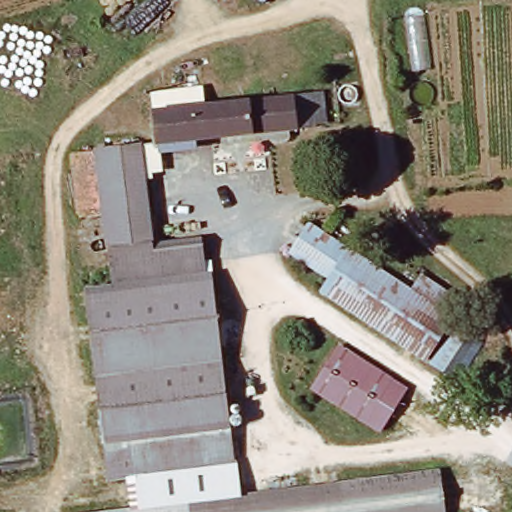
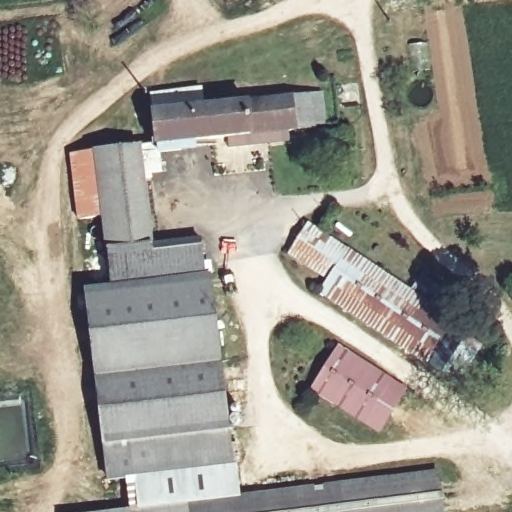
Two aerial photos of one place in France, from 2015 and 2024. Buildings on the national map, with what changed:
unchanged [(257,0),(272,0),(264,8),(257,0)]
unchanged [(156,138),(152,96),(200,91),(202,109),(324,96),(323,115),(317,115),(315,129),(157,145),(160,164),(140,167),(138,151),(139,139),(156,138)]
unchanged [(138,151),(140,167),(152,244),(107,252),(102,222),(82,222),(73,160),(138,151)]
unchanged [(448,327),(478,349),(464,370),(437,351),(425,364),(320,294),(329,279),(290,254),(310,224),(415,289),(423,275),(461,305),(448,327)]
unchanged [(114,292),(107,252),(152,244),(204,237),(210,279),(114,292)]
unchanged [(90,294),(114,292),(210,279),(218,277),(220,298),(93,319),(90,294)]
unchanged [(113,479),(93,319),(220,298),(239,461),(132,476),(113,479)]
unchanged [(317,391),(342,353),(409,396),(384,434),(317,391)]
unchanged [(242,459),(246,484),(136,498),(132,476),(239,461),(242,459)]
unchanged [(440,474),(444,512),(342,512),(340,487),(440,474)]
unchanged [(248,497),(142,512),(138,512),(136,498),(246,484),(248,497)]
unchanged [(310,489),(340,487),(342,512),(311,512),(310,489)]
unchanged [(248,497),(310,489),(311,512),(142,512),(248,497)]

